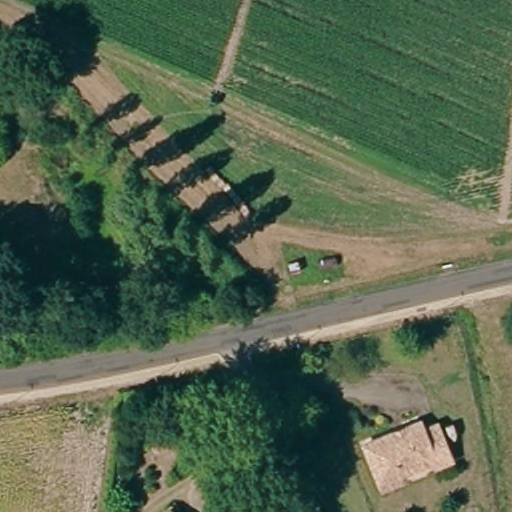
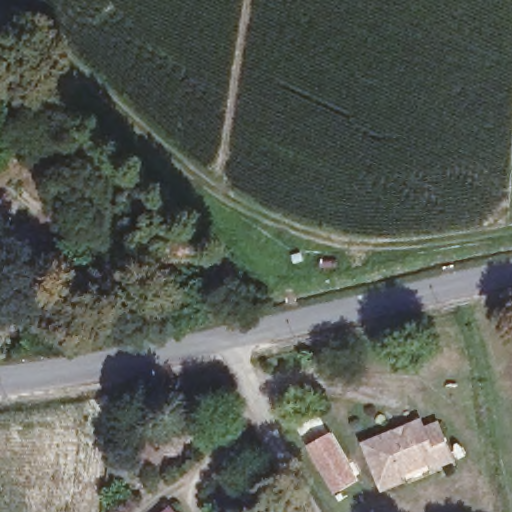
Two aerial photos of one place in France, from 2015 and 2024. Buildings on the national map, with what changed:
unchanged [(443,472),(438,461),(436,468),(406,481),(408,486),(388,494),(371,451),(402,438),(410,435),(426,428),(429,436),(443,431),(452,453),(457,466),(443,472)]
new [(305,445),(330,431),(357,479),(334,492),(305,445)]

